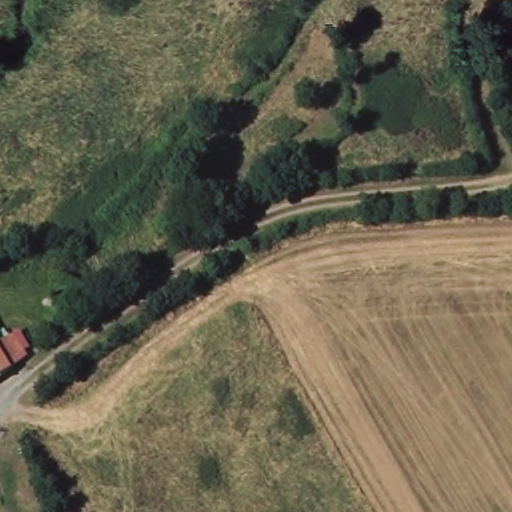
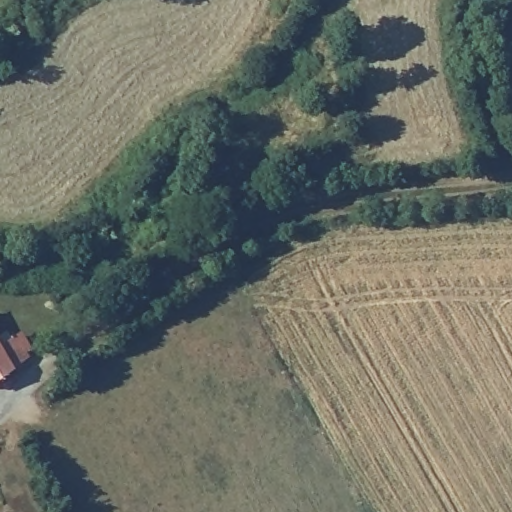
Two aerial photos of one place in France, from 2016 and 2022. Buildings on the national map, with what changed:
unchanged [(0,383),(0,345),(10,337),(11,340),(24,361),(1,382),(0,383)]

